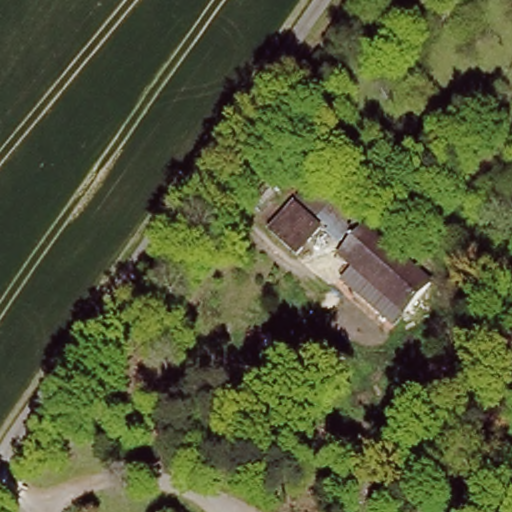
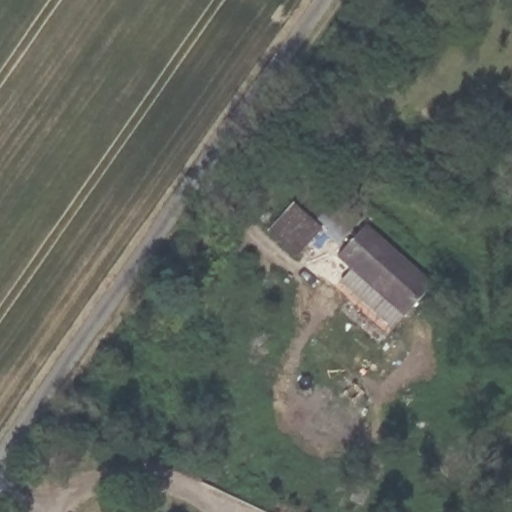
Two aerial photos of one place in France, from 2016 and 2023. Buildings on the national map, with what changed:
unchanged [(267,227),(291,200),(317,222),(293,251),(267,227)]
unchanged [(337,248),(362,220),(426,277),(401,307),(337,248)]
unchanged [(360,481),(371,488),(359,509),(347,501),(360,481)]
unchanged [(305,511),(306,512),(304,512),(305,511)]

